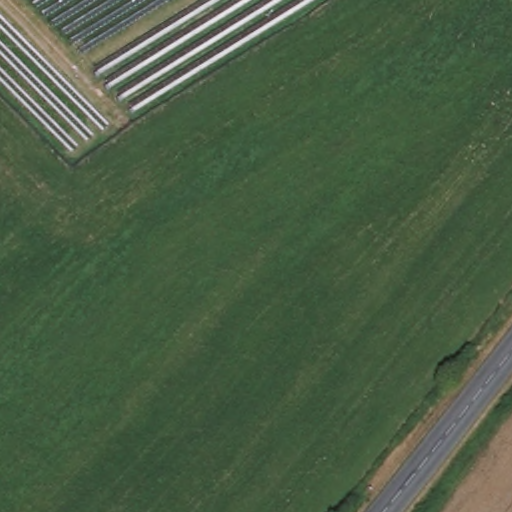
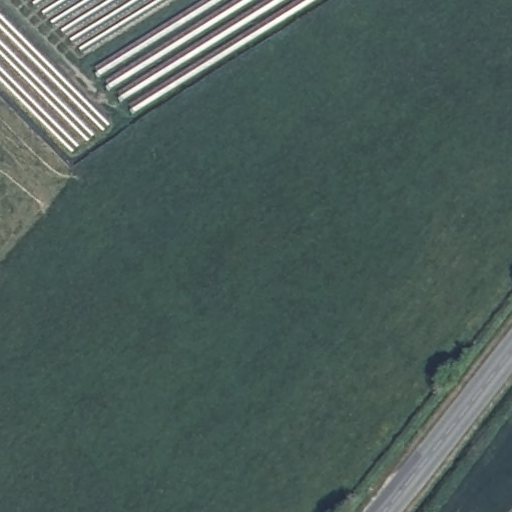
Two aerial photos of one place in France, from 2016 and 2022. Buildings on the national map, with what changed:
unchanged [(0,0),(320,0),(127,120),(70,158),(0,90),(0,0)]

